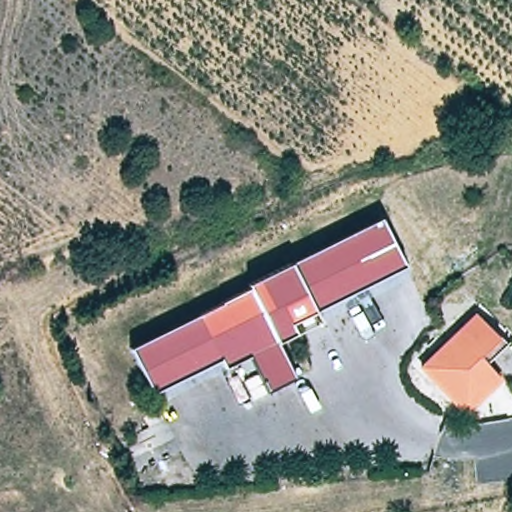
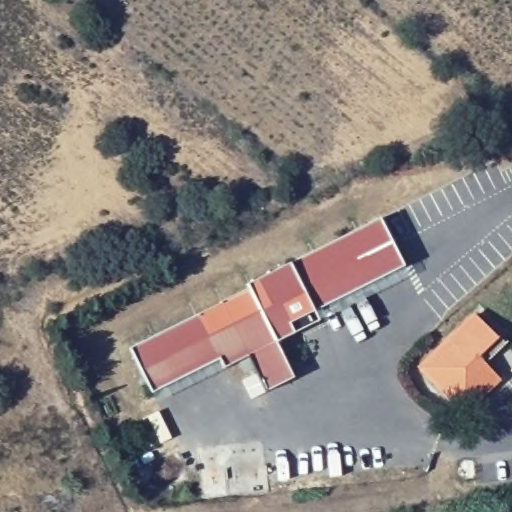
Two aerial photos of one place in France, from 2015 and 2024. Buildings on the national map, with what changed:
unchanged [(220,301),(218,298),(252,285),(250,279),(380,217),(405,266),(291,319),(295,331),(278,339),(295,375),(264,388),(248,354),(223,365),(220,356),(149,389),(128,345),(220,301)]
unchanged [(480,358),(501,382),(488,395),(482,387),(459,408),(422,368),(474,317),(498,340),(480,358)]

